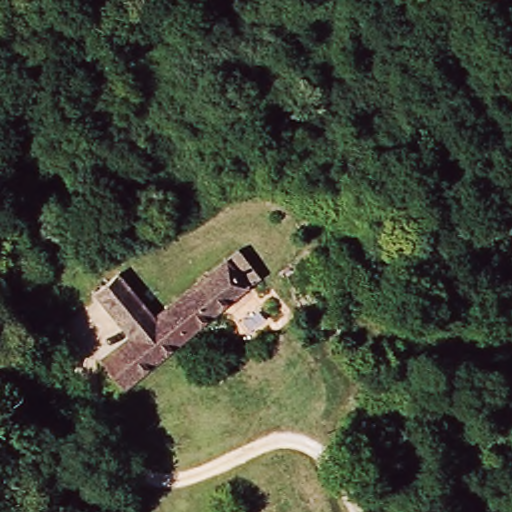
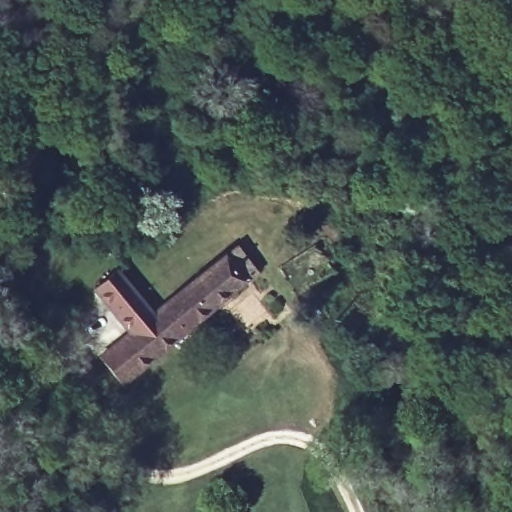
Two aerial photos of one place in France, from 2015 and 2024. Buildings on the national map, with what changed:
unchanged [(123,388),(103,360),(135,334),(158,315),(235,255),(258,280),(123,388)]
unchanged [(135,334),(100,290),(123,272),(158,315),(135,334)]

